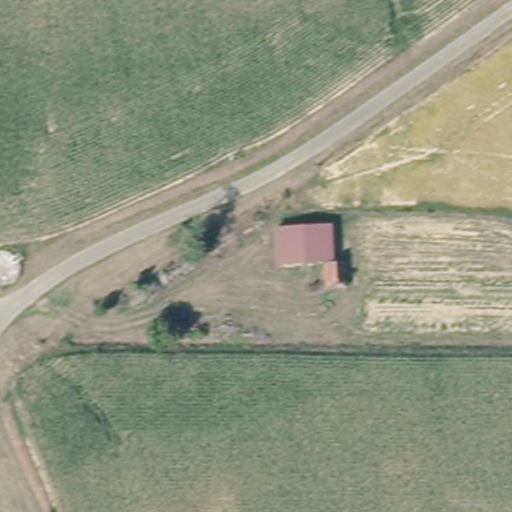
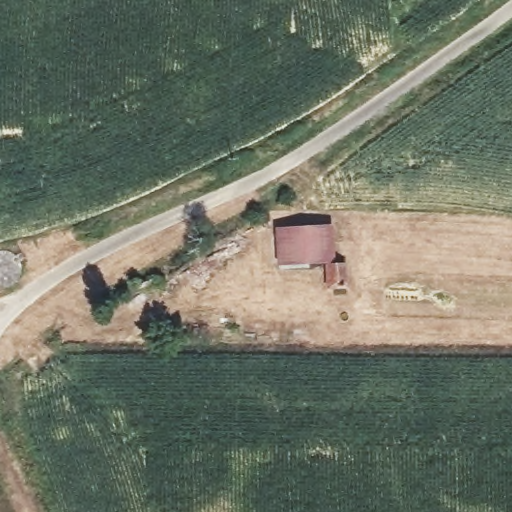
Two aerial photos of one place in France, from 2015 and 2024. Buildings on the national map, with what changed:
unchanged [(351,280),(329,279),(330,254),(281,256),(280,220),(336,218),(337,253),(350,255),(351,280)]

